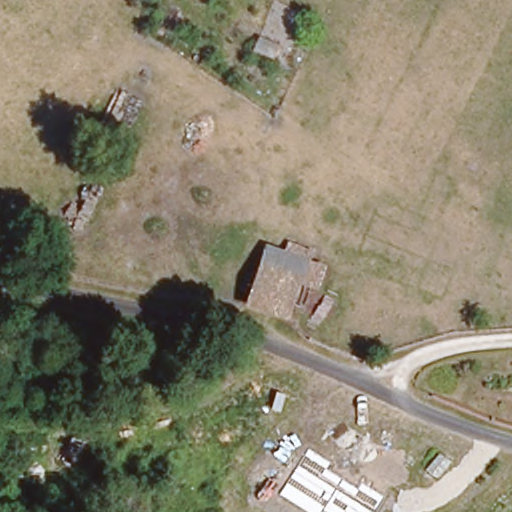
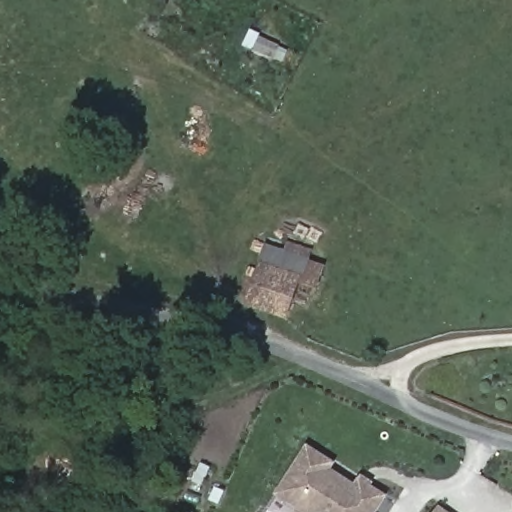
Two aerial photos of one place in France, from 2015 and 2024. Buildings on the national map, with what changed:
unchanged [(251,0),(267,0),(260,15),(247,7),(251,0)]
unchanged [(251,67),(258,49),(272,55),(265,72),(251,67)]
unchanged [(260,310),(278,256),(307,266),(289,321),(260,310)]
new [(277,494),(308,445),(336,463),(333,470),(356,483),(361,475),(374,482),(372,486),(388,496),(379,512),(305,512),(277,494)]
new [(448,512),(437,512),(441,507),(448,512)]

